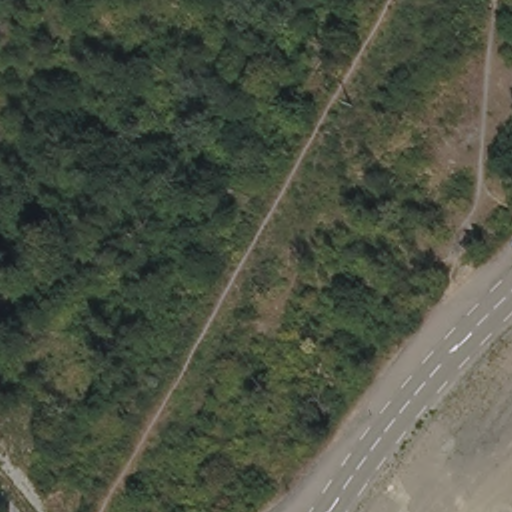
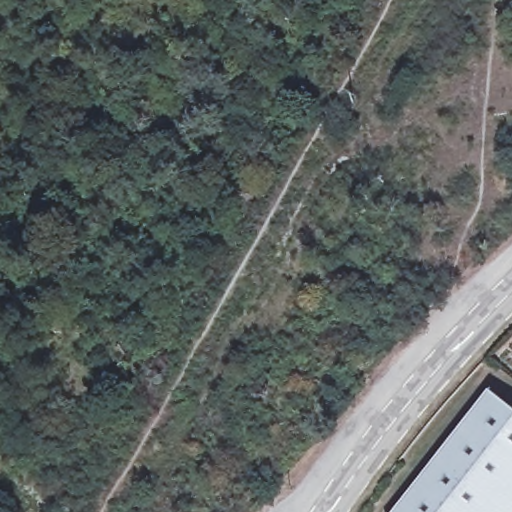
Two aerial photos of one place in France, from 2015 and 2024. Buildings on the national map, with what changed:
new [(492,391),(512,406),(512,512),(396,512),(492,391)]

